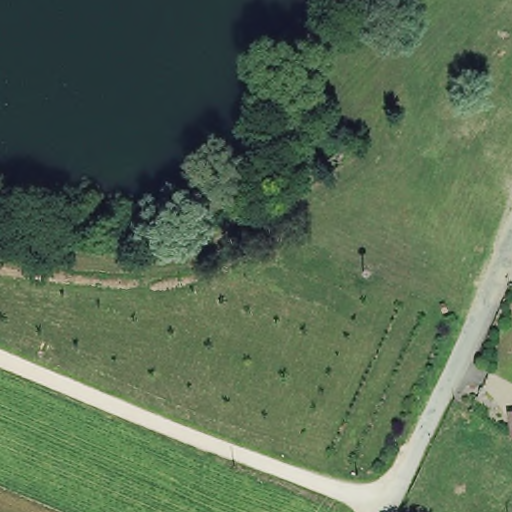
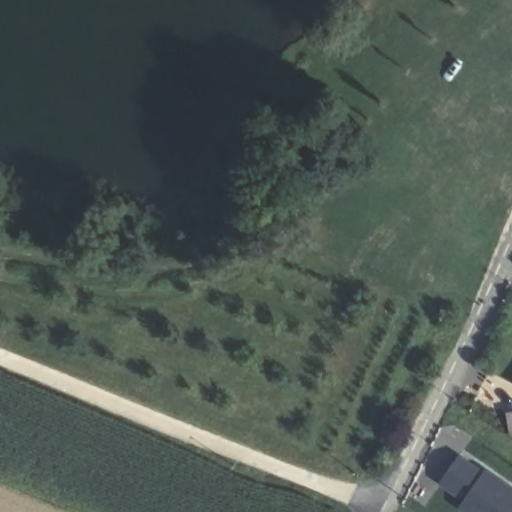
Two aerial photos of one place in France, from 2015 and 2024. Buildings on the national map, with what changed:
unchanged [(512,416),(512,421),(511,416),(512,416)]
new [(483,472),(485,469),(512,488),(512,512),(471,512),(460,505),(466,497),(441,480),(458,455),(483,472)]

